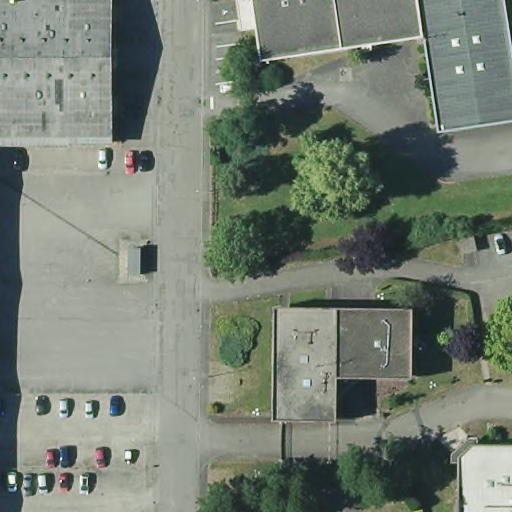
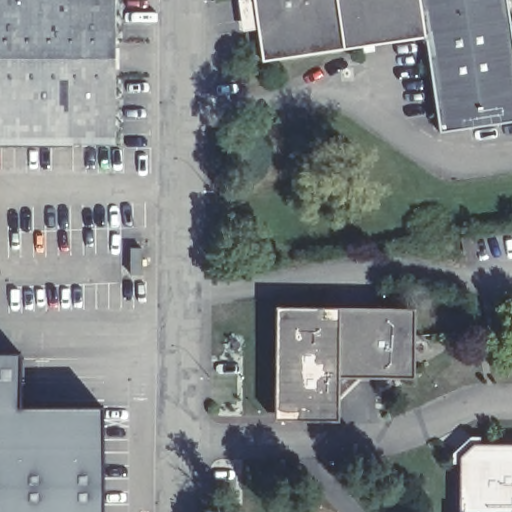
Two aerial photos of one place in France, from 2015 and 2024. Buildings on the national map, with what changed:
unchanged [(103,145),(0,145),(0,0),(104,0),(103,145)]
unchanged [(427,32),(265,56),(257,0),(423,0),(427,32)]
unchanged [(512,11),(512,119),(441,130),(427,32),(423,0),(510,0),(512,11)]
unchanged [(128,269),(128,244),(141,245),(140,270),(128,269)]
unchanged [(280,305),(415,307),(412,376),(339,375),(338,421),(275,420),(280,305)]
new [(22,407),(99,408),(104,487),(103,512),(0,512),(0,355),(21,355),(22,407)]
unchanged [(476,444),(512,445),(512,512),(462,512),(462,461),(476,444)]

